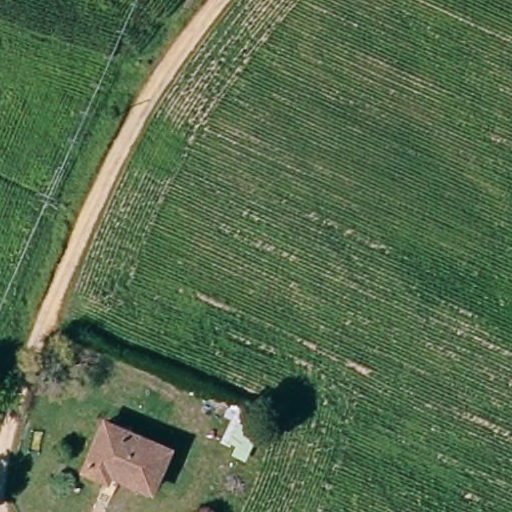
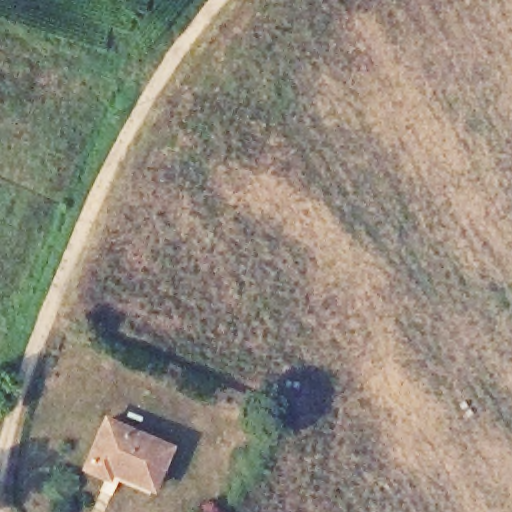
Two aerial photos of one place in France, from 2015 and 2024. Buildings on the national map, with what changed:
unchanged [(113,465),(109,475),(90,468),(106,422),(171,445),(157,482),(113,465)]

